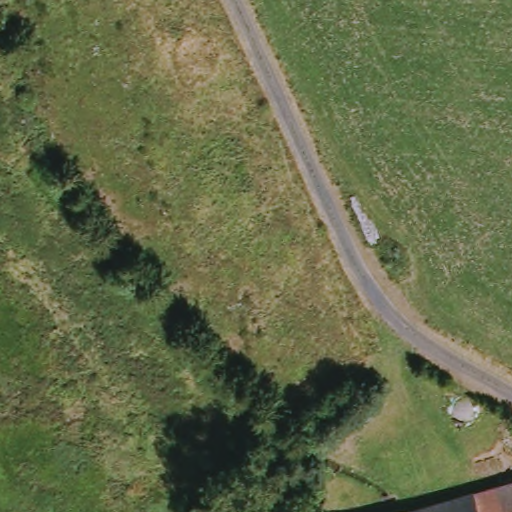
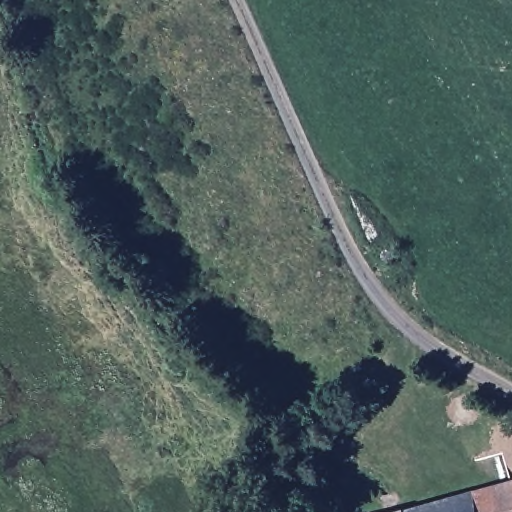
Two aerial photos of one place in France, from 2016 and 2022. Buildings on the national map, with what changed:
unchanged [(490,512),(484,488),(512,481),(512,512),(490,512)]
unchanged [(490,512),(408,512),(407,510),(484,488),(490,512)]
unchanged [(408,512),(398,512),(407,510),(408,512)]

